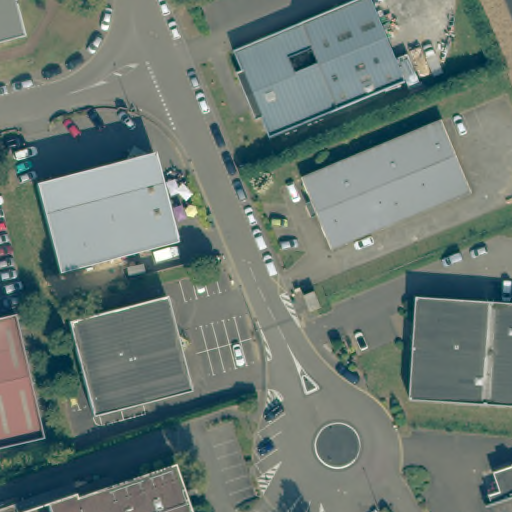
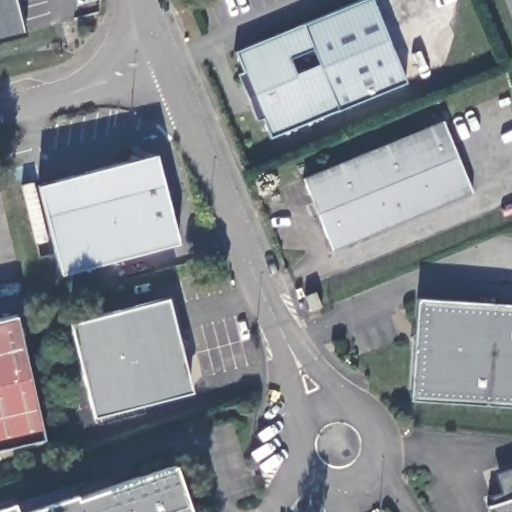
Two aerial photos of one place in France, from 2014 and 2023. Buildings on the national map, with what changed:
unchanged [(0,40),(0,0),(16,0),(24,33),(0,40)]
unchanged [(368,0),(373,0),(406,83),(271,139),(263,119),(256,121),(237,75),(244,72),(237,53),(368,0)]
unchanged [(447,117),(478,188),(338,246),(309,174),(447,117)]
unchanged [(155,157),(179,244),(63,275),(40,185),(155,157)]
unchanged [(315,295),(320,308),(310,313),(304,300),(315,295)]
unchanged [(512,307),(512,406),(412,399),(417,299),(512,307)]
unchanged [(191,386),(143,397),(144,406),(95,418),(72,323),(120,310),(122,317),(170,306),(191,386)]
unchanged [(0,452),(0,319),(15,315),(45,441),(0,452)]
unchanged [(83,493),(181,461),(198,512),(0,512),(0,507),(79,481),(83,493)]
unchanged [(503,512),(498,498),(503,495),(501,487),(512,482),(509,472),(512,471),(512,512),(503,512)]

